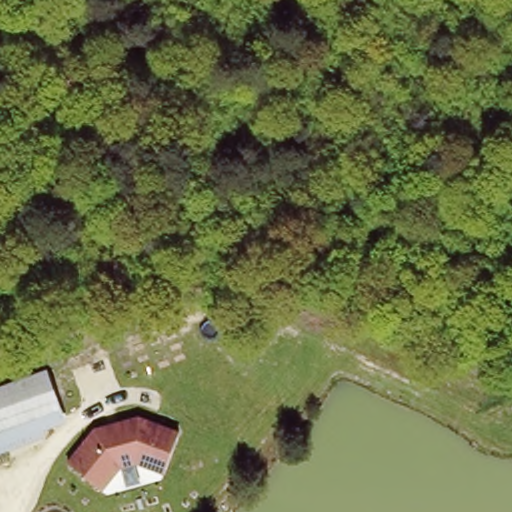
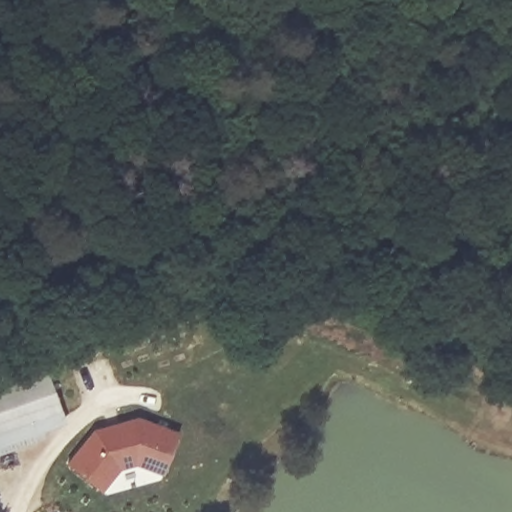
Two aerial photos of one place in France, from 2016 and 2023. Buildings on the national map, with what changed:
unchanged [(46,365),(68,421),(45,429),(47,435),(23,443),(19,438),(0,445),(0,383),(46,365)]
unchanged [(95,425),(140,414),(180,429),(163,470),(139,460),(121,466),(106,485),(69,459),(95,425)]

